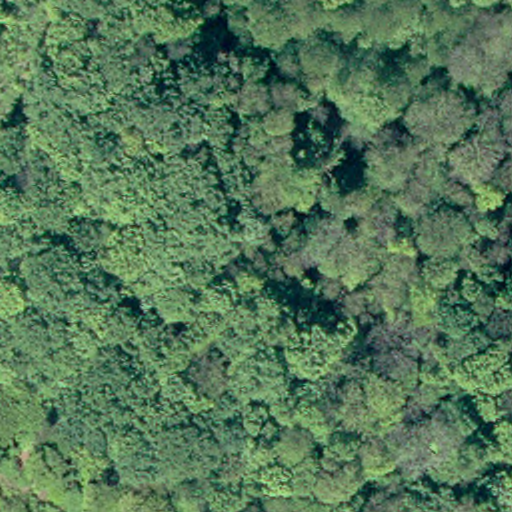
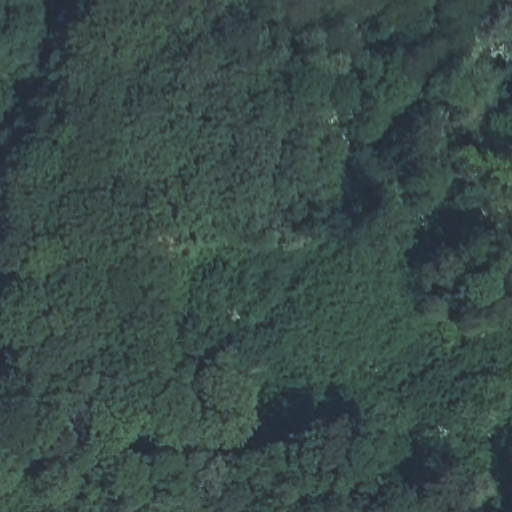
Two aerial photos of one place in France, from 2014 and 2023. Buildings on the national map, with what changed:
unchanged [(16,158),(5,188),(0,187),(0,152),(16,158)]

